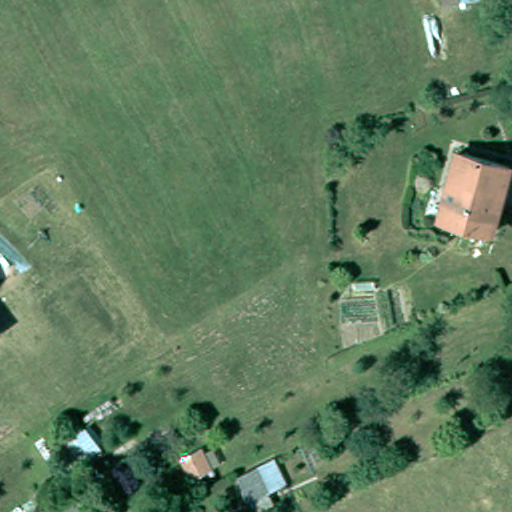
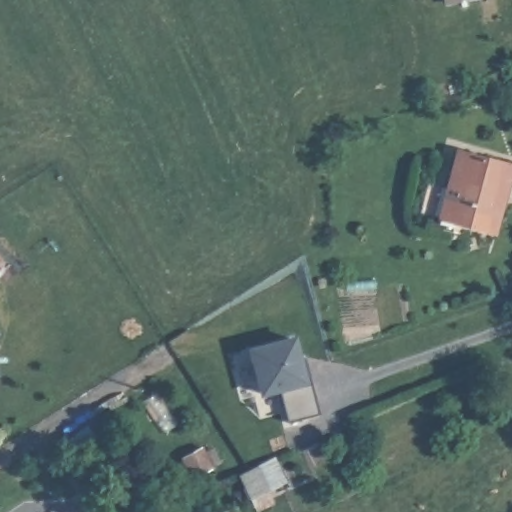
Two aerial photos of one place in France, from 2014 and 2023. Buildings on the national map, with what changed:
unchanged [(441,0),(467,0),(441,3),(441,0)]
unchanged [(440,218),(457,152),(510,166),(491,232),(440,218)]
new [(295,337),(300,360),(306,358),(320,416),(286,424),(280,392),(258,398),(246,349),(295,337)]
unchanged [(250,499),(238,475),(273,459),(285,482),(250,499)]

